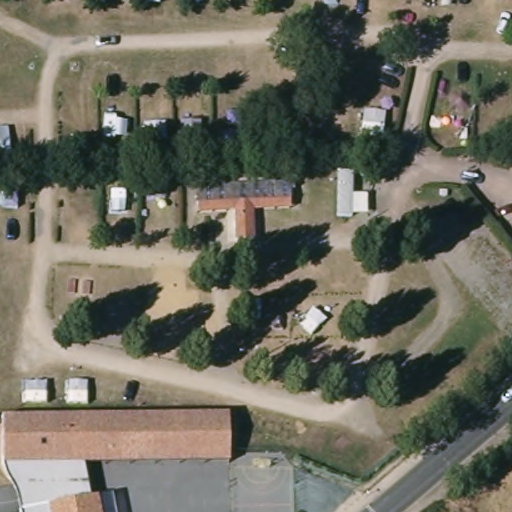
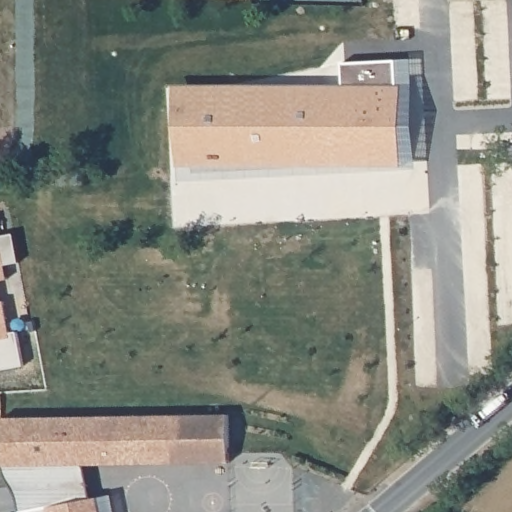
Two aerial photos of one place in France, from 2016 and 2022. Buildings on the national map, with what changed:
new [(179,182),(173,84),(343,85),(342,62),(395,60),(396,84),(400,85),(402,169),(179,182)]
demolished [(269,183),(269,177),(275,177),(276,183),(291,182),(291,199),(199,202),(198,187),(269,183)]
demolished [(254,208),(255,238),(237,238),(236,209),(254,208)]
unchanged [(229,414),(228,463),(82,465),(88,499),(111,494),(115,512),(21,512),(16,492),(7,478),(2,465),(2,417),(229,414)]

